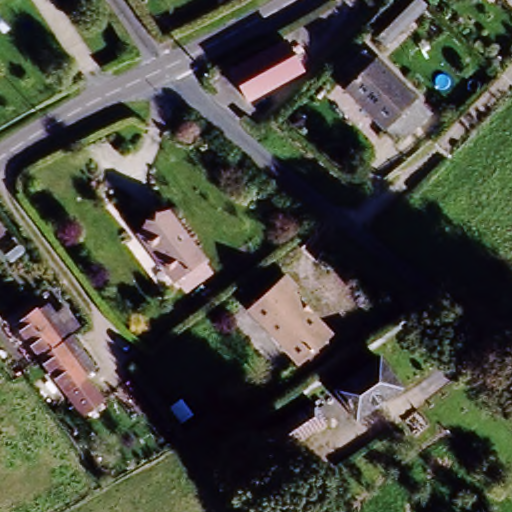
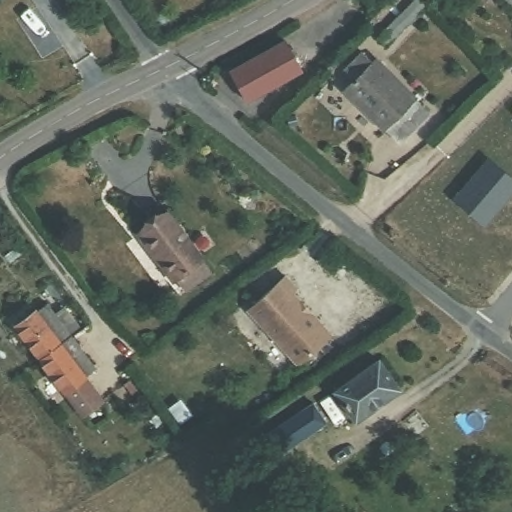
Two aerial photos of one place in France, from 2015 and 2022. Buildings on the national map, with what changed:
unchanged [(301,67),(247,99),(229,68),(283,36),(301,67)]
unchanged [(392,133),(341,89),(370,56),(421,100),(430,108),(401,141),(392,133)]
new [(489,156),(512,178),(512,196),(484,227),(452,197),(489,156)]
unchanged [(196,254),(170,271),(139,226),(165,208),(196,254)]
unchanged [(285,276),(334,332),(298,364),(251,310),(285,276)]
unchanged [(92,384),(74,397),(42,351),(17,313),(39,298),(52,290),(61,304),(68,299),(84,324),(76,329),(94,358),(80,367),(92,384)]
unchanged [(92,384),(80,367),(94,358),(127,408),(95,428),(74,397),(92,384)]
unchanged [(376,358),(393,386),(353,411),(335,384),(376,358)]
unchanged [(310,402),(326,425),(269,461),(255,439),(310,402)]

